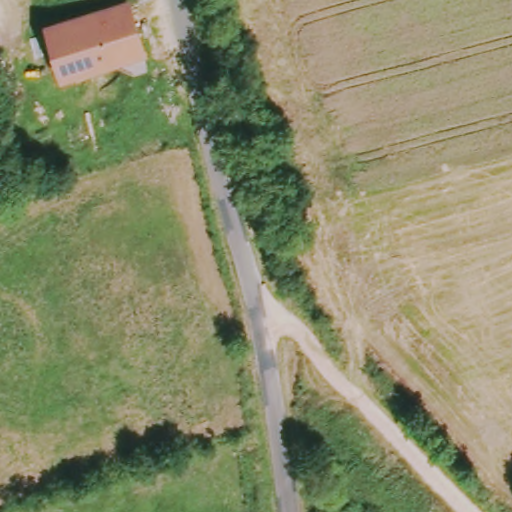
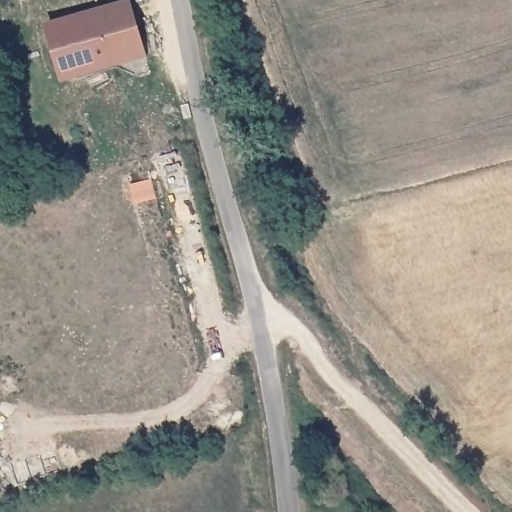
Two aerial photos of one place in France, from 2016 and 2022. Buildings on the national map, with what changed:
unchanged [(44,28),(133,3),(148,61),(61,87),(44,28)]

